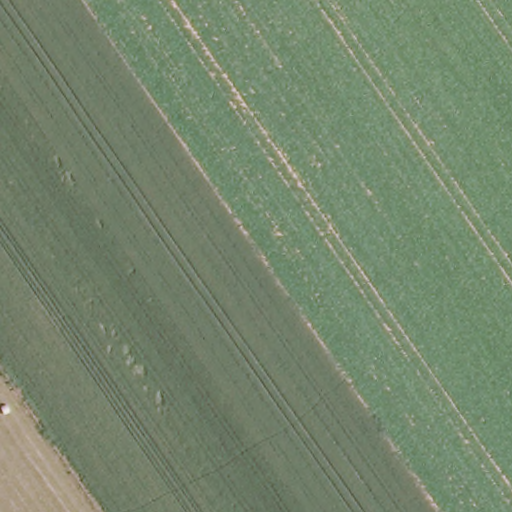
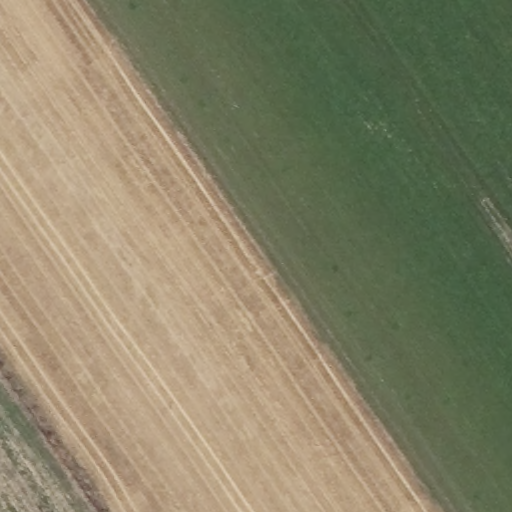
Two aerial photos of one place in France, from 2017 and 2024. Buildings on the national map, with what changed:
[]

